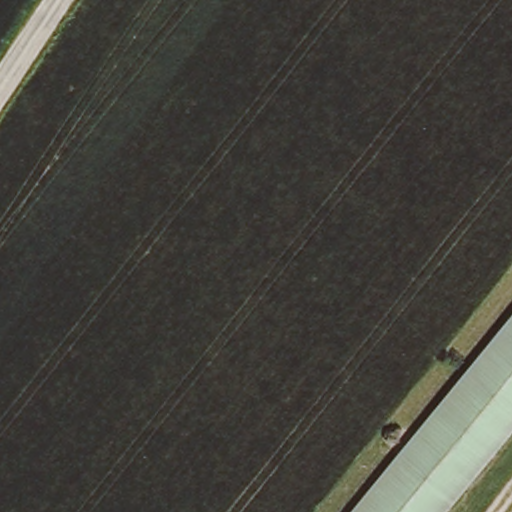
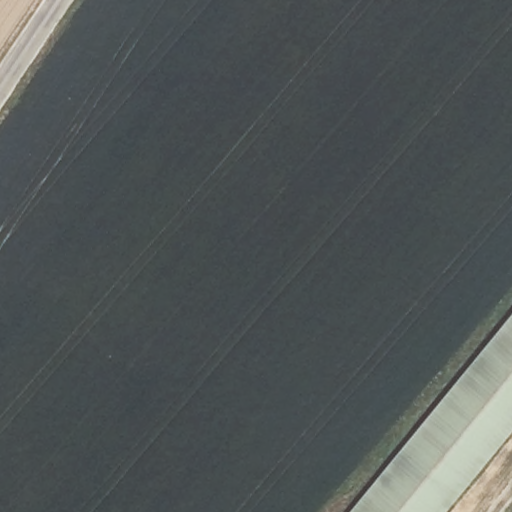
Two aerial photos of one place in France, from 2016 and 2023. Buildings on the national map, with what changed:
unchanged [(512,332),(512,425),(441,512),(364,512),(512,332)]

